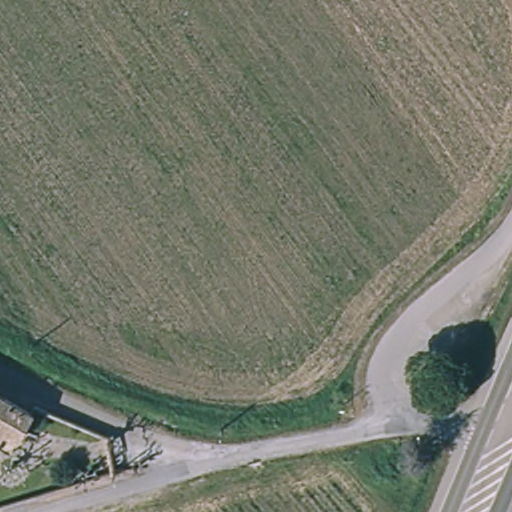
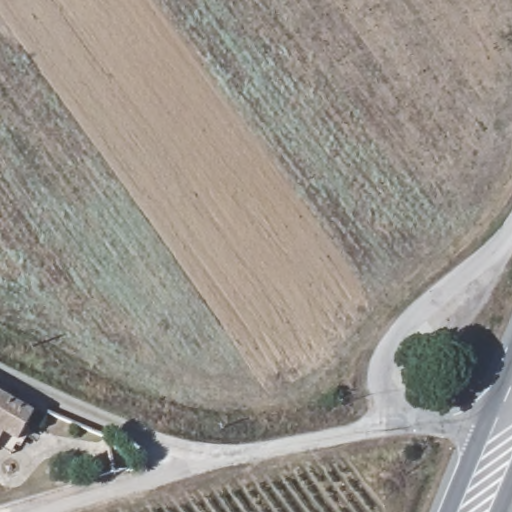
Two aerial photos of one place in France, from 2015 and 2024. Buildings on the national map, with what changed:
unchanged [(0,429),(0,395),(34,413),(18,438),(0,429)]

